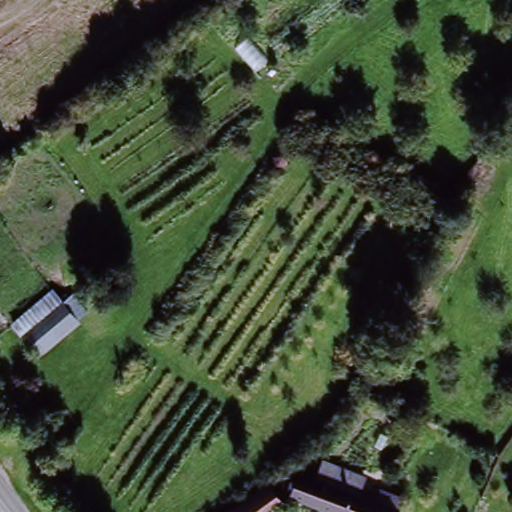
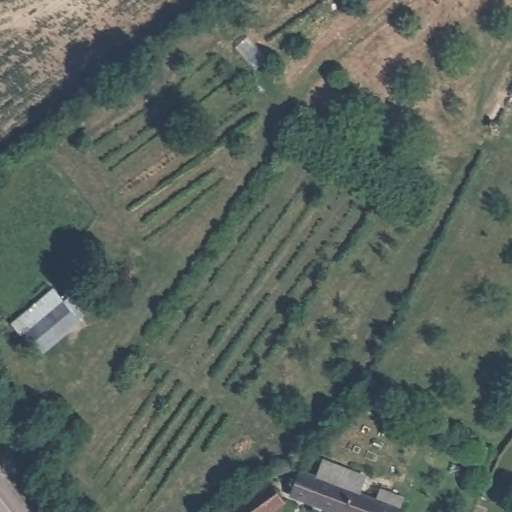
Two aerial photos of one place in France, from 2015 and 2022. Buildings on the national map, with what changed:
unchanged [(76,295),(91,312),(81,322),(44,357),(17,329),(55,294),(65,305),(76,295)]
unchanged [(296,473),(312,479),(320,461),(363,478),(355,497),(379,506),(385,491),(387,492),(404,500),(399,512),(328,512),(287,496),(296,473)]
unchanged [(279,497),(259,512),(233,512),(271,484),(279,497)]

